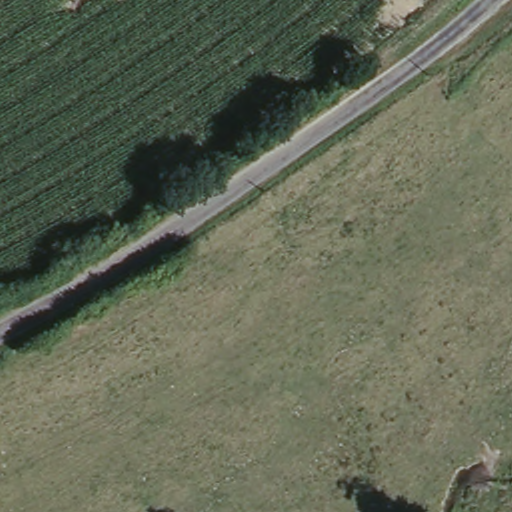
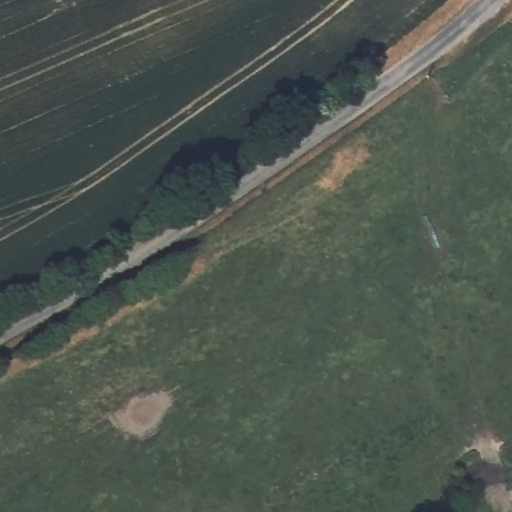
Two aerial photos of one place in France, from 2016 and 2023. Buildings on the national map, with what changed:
unchanged [(332,9),(372,63),(344,81),(306,28),(332,9)]

